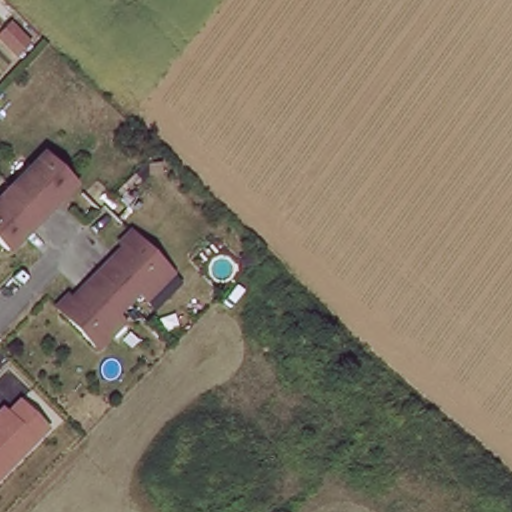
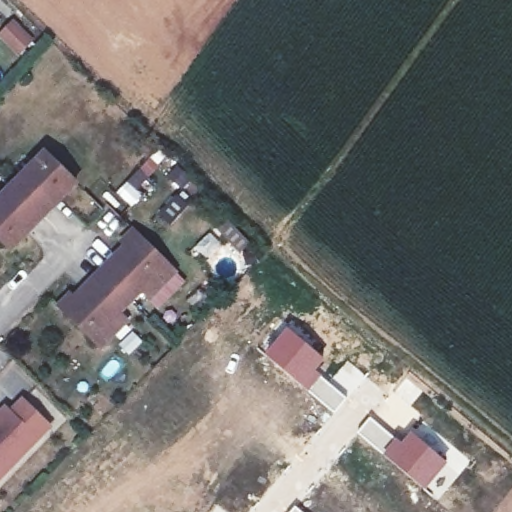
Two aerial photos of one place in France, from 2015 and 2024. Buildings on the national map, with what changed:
unchanged [(27,56),(27,57),(7,37),(17,27),(37,46),(27,56)]
unchanged [(28,222),(33,228),(14,248),(0,235),(0,201),(47,152),(76,184),(56,204),(50,200),(28,222)]
unchanged [(135,228),(178,272),(152,298),(143,290),(122,312),(132,321),(103,350),(57,307),(70,294),(77,301),(127,247),(121,242),(135,228)]
new [(334,415),(307,392),(262,353),(286,326),(325,360),(316,371),(322,375),(348,397),(334,415)]
new [(347,361),(367,376),(350,395),(332,378),(347,361)]
unchanged [(12,410),(22,398),(53,427),(0,483),(0,411),(7,405),(12,410)]
new [(410,431),(447,462),(424,491),(380,455),(355,433),(370,417),(395,437),(401,442),(410,431)]
new [(295,505),(304,512),(289,512),(295,505)]

